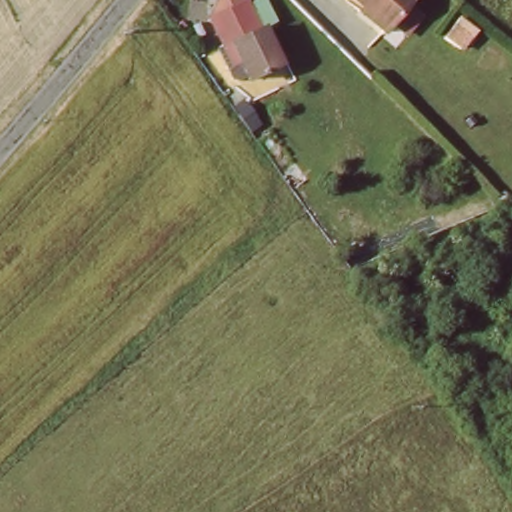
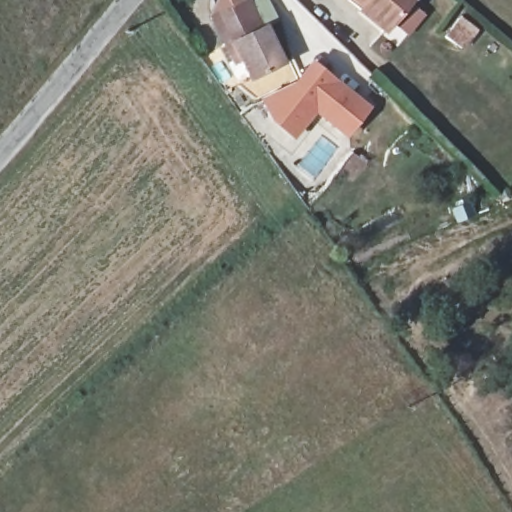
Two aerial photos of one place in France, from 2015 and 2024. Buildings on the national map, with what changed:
unchanged [(213,14),(242,0),(247,0),(259,24),(266,21),(283,59),(248,75),(241,57),(234,61),(225,40),(213,14)]
unchanged [(363,7),(355,0),(414,0),(389,25),(382,33),(359,11),(363,7)]
new [(348,138),(315,112),(294,140),(272,123),(259,97),(293,84),(312,60),(373,107),(348,138)]

